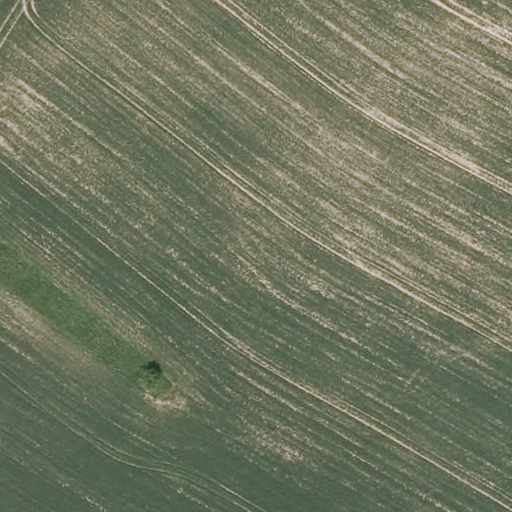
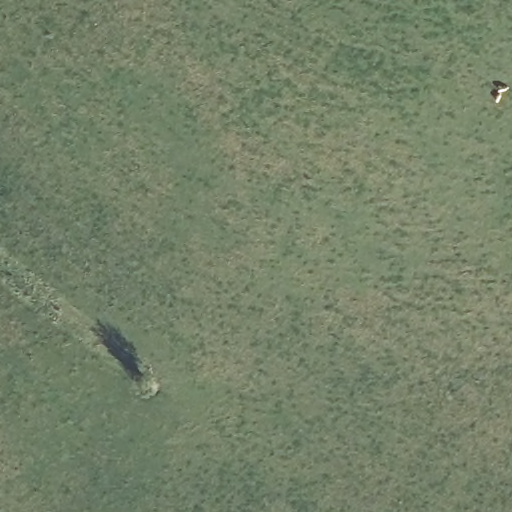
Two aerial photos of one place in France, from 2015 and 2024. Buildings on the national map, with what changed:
[]

